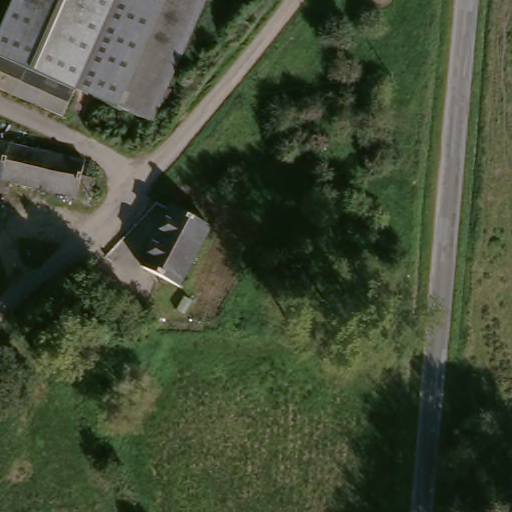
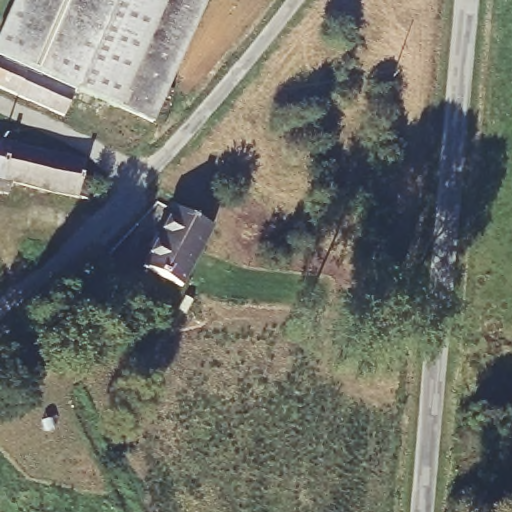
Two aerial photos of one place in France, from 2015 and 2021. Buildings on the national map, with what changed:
unchanged [(70,85),(68,90),(35,77),(0,63),(0,49),(20,0),(202,0),(150,120),(70,85)]
unchanged [(0,94),(0,63),(35,77),(68,90),(56,117),(0,94)]
unchanged [(9,193),(0,191),(0,143),(88,161),(85,176),(97,179),(91,201),(11,183),(9,193)]
unchanged [(170,214),(210,233),(180,289),(142,270),(170,214)]

